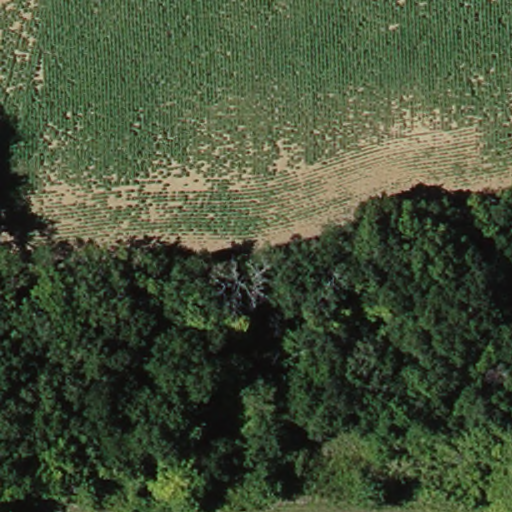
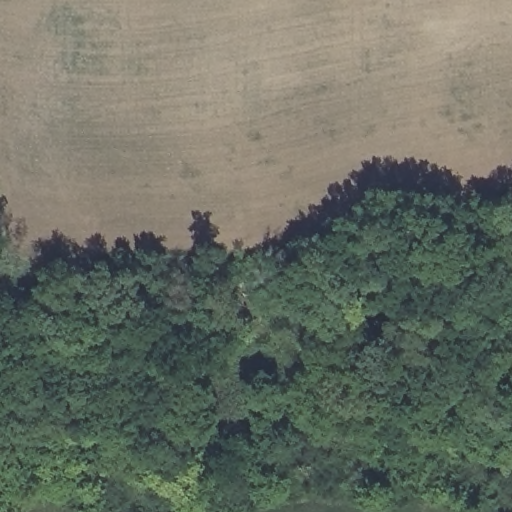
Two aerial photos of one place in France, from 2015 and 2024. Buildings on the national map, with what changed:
[]

